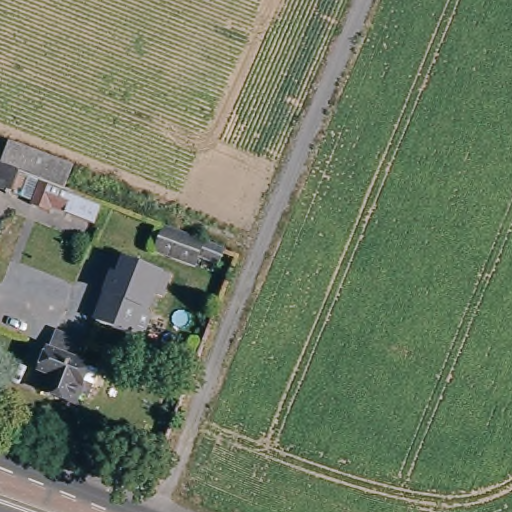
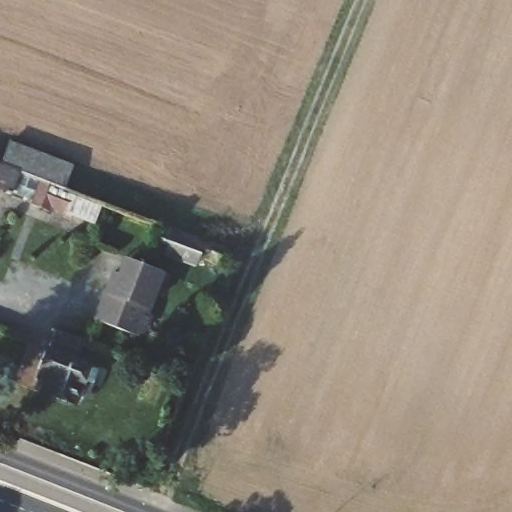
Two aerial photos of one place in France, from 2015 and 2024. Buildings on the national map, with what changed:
unchanged [(13,142),(75,166),(66,187),(5,164),(13,142)]
unchanged [(66,187),(106,202),(98,223),(55,206),(54,211),(35,204),(35,200),(15,191),(14,194),(0,189),(0,162),(5,164),(66,187)]
unchanged [(218,261),(198,255),(195,263),(156,249),(165,225),(222,250),(218,261)]
unchanged [(128,258),(135,260),(172,275),(163,296),(155,293),(149,310),(152,316),(147,330),(140,333),(139,336),(98,320),(117,270),(123,272),(128,258)]
unchanged [(40,368),(55,330),(83,340),(76,360),(88,365),(98,369),(88,395),(78,392),(74,402),(41,390),(45,380),(36,376),(40,368)]

